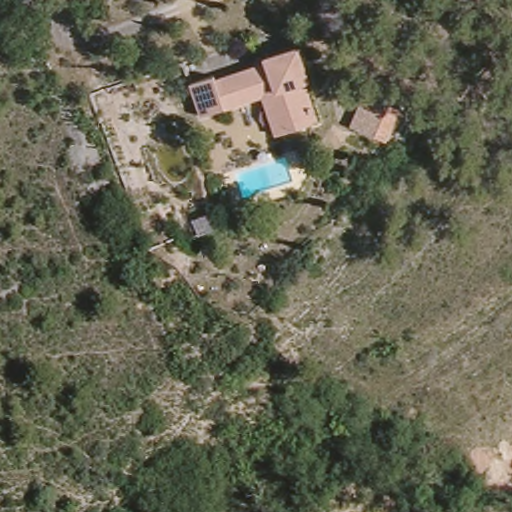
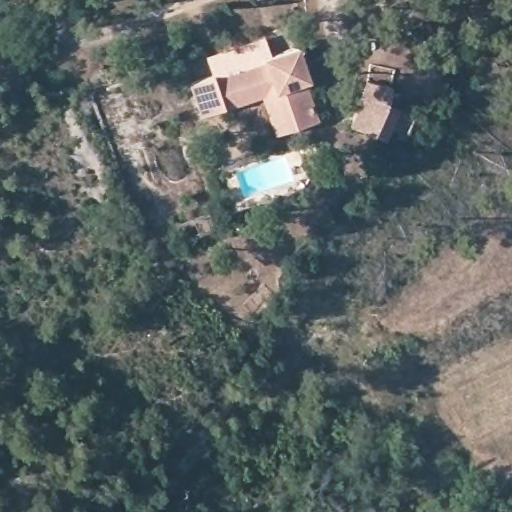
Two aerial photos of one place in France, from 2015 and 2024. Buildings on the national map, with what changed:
unchanged [(268,94),(207,115),(196,82),(219,74),(220,79),(272,61),(270,56),(302,45),(313,77),(309,80),(322,119),(295,129),(282,133),(268,94)]
unchanged [(362,85),(386,90),(383,107),(370,140),(346,130),(358,102),(362,85)]

